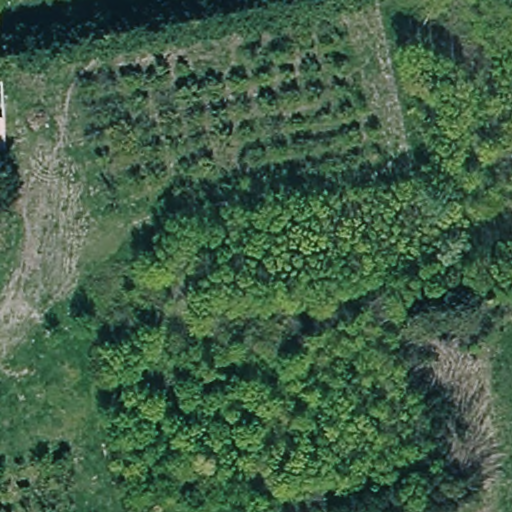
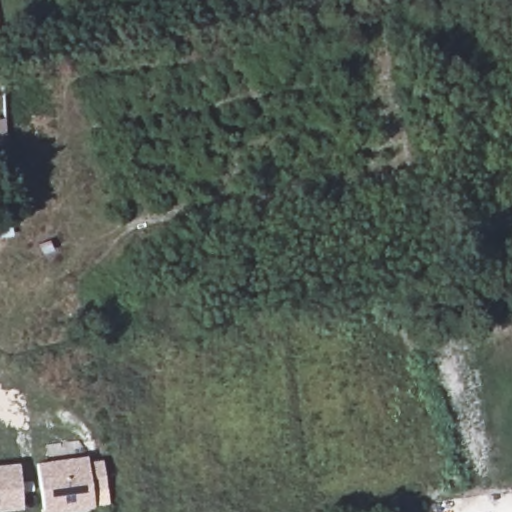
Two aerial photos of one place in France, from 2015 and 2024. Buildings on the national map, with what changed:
new [(89,459),(89,464),(104,462),(106,490),(92,492),(93,507),(43,512),(38,463),(89,459)]
new [(23,503),(0,506),(0,464),(20,462),(23,503)]

